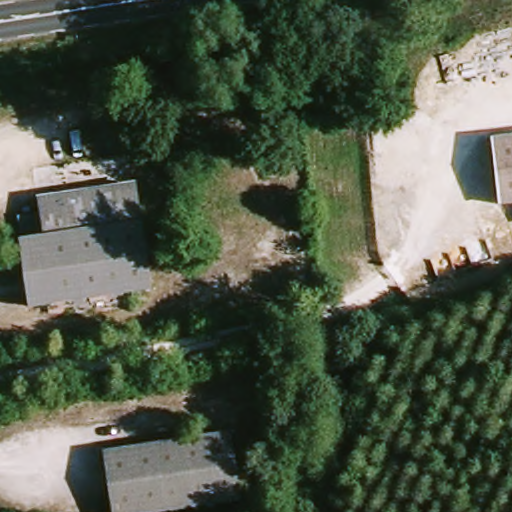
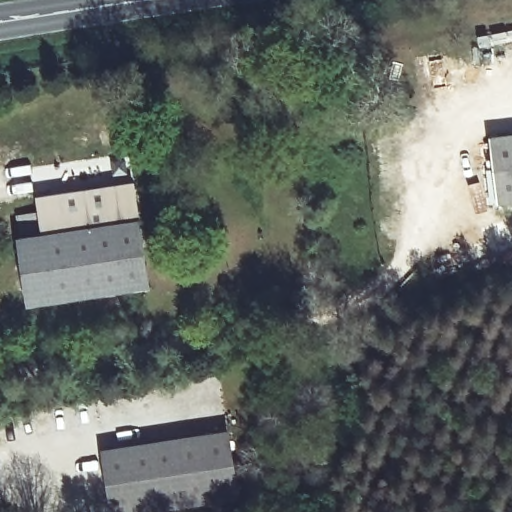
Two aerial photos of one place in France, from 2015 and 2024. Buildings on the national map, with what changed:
unchanged [(498,211),(494,138),(512,137),(512,208),(498,211)]
unchanged [(19,249),(43,244),(36,206),(130,187),(151,288),(32,312),(19,249)]
unchanged [(228,433),(241,498),(169,512),(116,512),(105,458),(228,433)]

